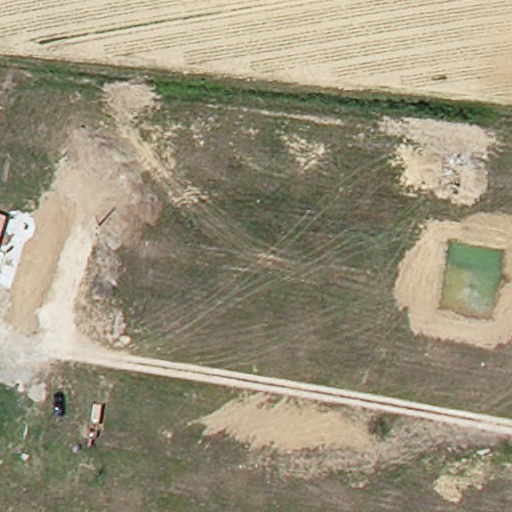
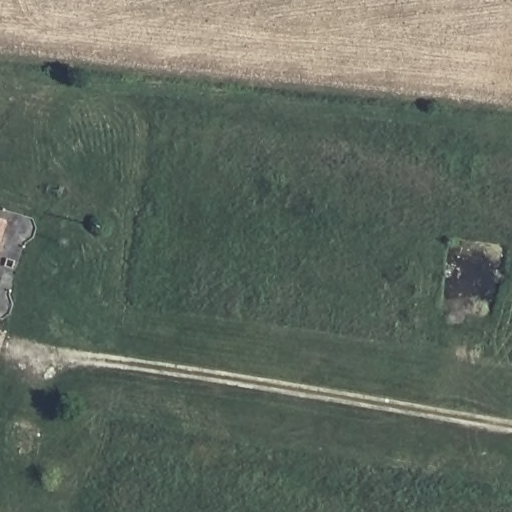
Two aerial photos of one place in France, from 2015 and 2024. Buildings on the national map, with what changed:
[]

